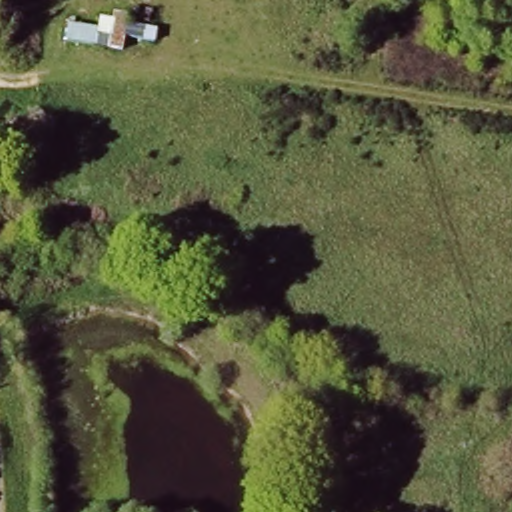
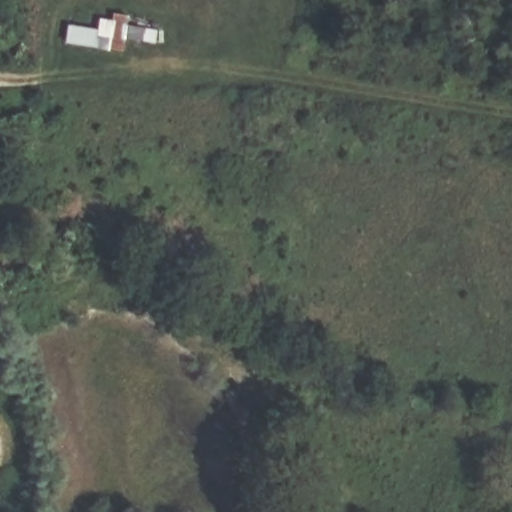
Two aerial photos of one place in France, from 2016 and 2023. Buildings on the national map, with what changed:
unchanged [(112,34),(115,12),(135,15),(129,55),(67,46),(70,27),(112,34)]

